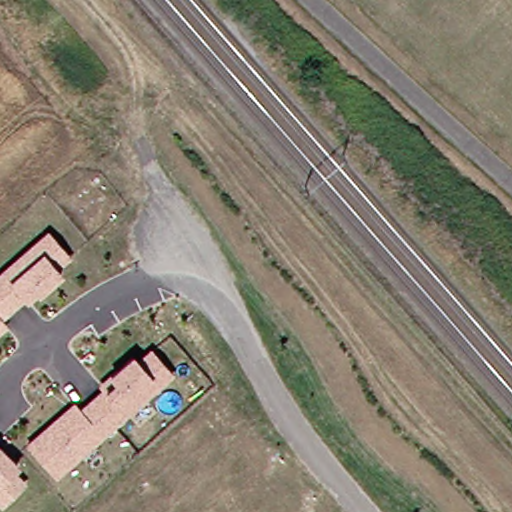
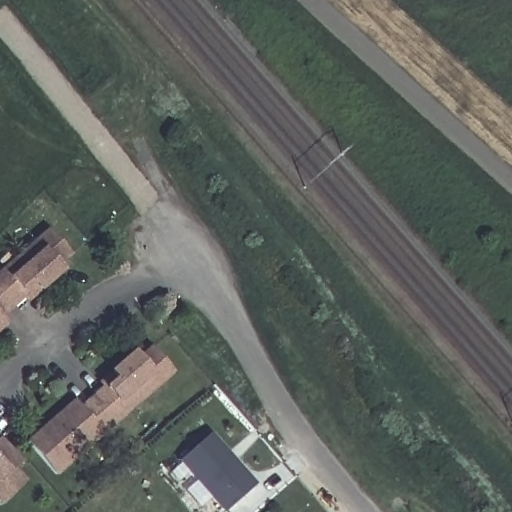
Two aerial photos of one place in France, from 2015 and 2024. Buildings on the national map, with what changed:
unchanged [(10,307),(0,296),(0,271),(19,255),(45,231),(66,255),(53,266),(58,272),(36,291),(26,301),(22,296),(10,307)]
unchanged [(0,316),(0,296),(10,307),(0,316)]
unchanged [(0,320),(4,324),(0,328),(0,320)]
unchanged [(112,428),(90,403),(102,392),(98,388),(109,378),(130,359),(135,365),(148,353),(170,377),(143,401),(125,417),(112,428)]
unchanged [(56,478),(27,447),(64,414),(72,407),(78,414),(90,403),(112,428),(91,446),(79,458),(56,478)]
new [(255,487),(226,512),(223,512),(178,462),(208,435),(255,487)]
unchanged [(12,473),(25,485),(2,508),(0,505),(0,450),(17,467),(12,473)]

